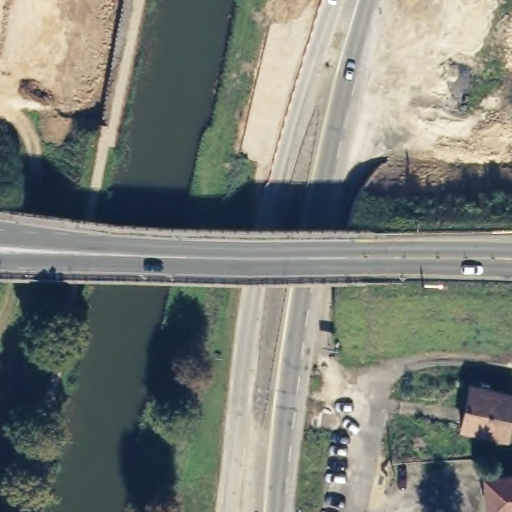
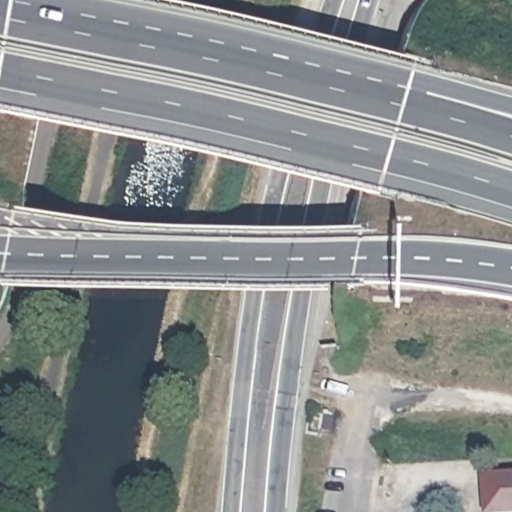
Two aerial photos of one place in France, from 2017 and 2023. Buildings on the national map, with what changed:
demolished [(512,390),(512,420),(508,440),(458,429),(469,380),(512,390)]
unchanged [(512,512),(482,512),(481,473),(512,472),(512,512)]

